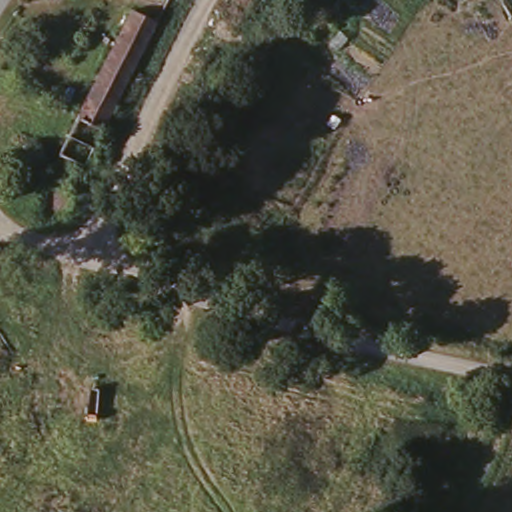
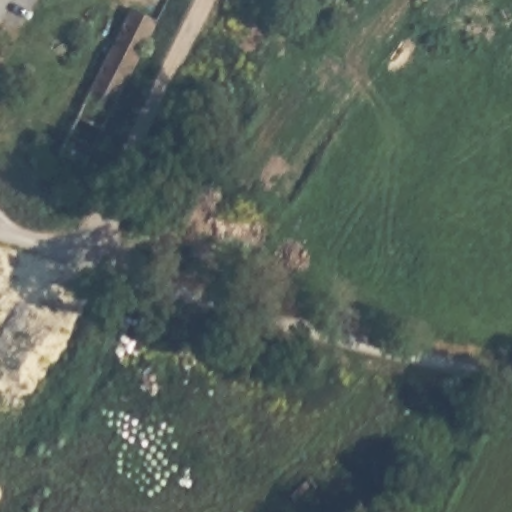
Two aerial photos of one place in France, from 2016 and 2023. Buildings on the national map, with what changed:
unchanged [(163,21),(103,132),(73,117),(128,8),(163,21)]

